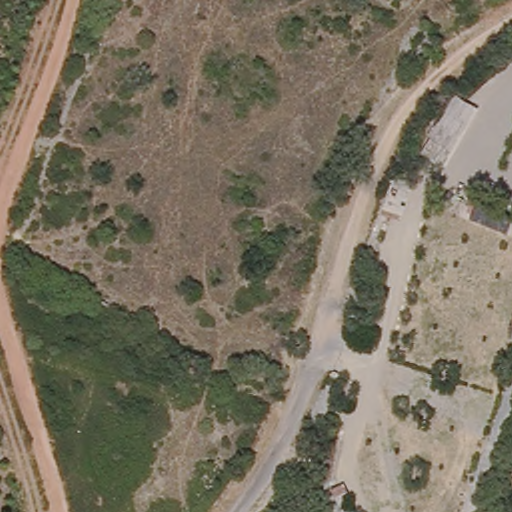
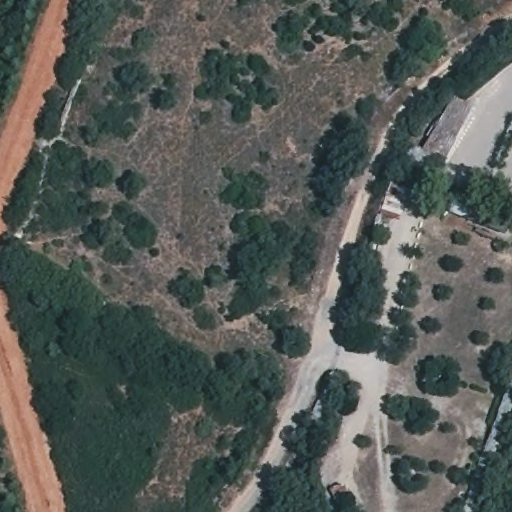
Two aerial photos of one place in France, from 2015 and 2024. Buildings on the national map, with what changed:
unchanged [(443,116),(465,128),(444,166),(421,152),(443,116)]

